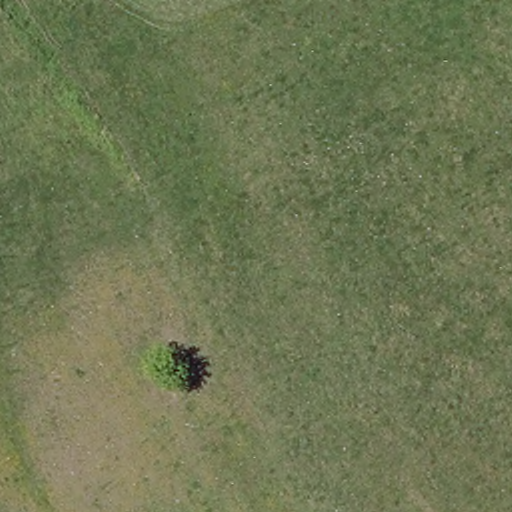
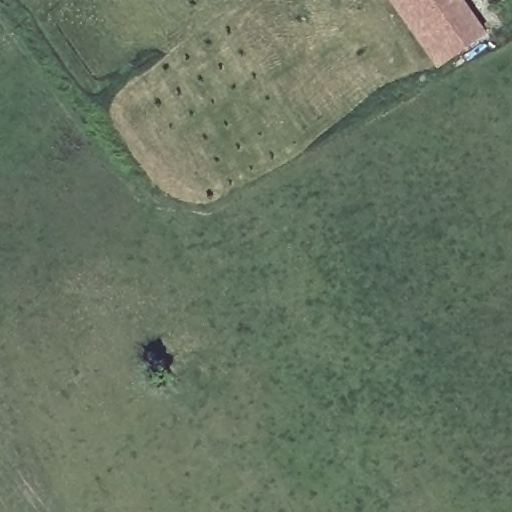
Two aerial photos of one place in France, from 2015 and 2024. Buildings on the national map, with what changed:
new [(439,65),(393,0),(466,0),(488,31),(439,65)]

